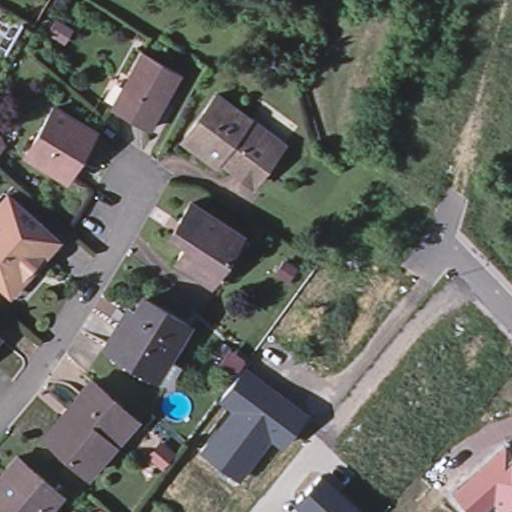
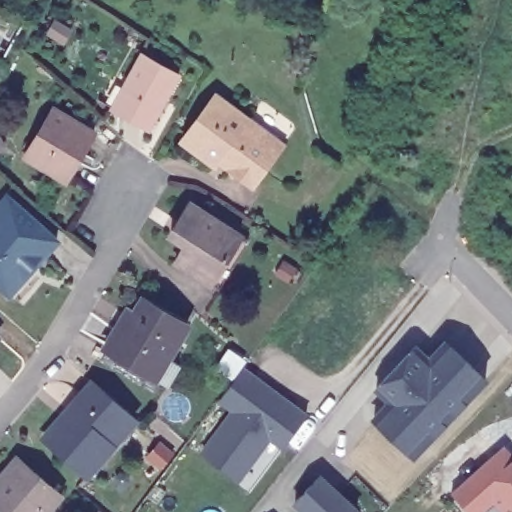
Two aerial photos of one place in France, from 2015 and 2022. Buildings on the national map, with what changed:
unchanged [(177,76),(145,130),(108,109),(140,55),(177,76)]
unchanged [(262,167),(248,185),(215,160),(211,165),(179,142),(213,97),(275,141),(280,145),(262,167)]
unchanged [(90,130),(63,175),(22,152),(50,105),(90,130)]
unchanged [(5,290),(0,286),(0,197),(4,193),(53,236),(5,290)]
unchanged [(212,284),(187,268),(168,256),(180,240),(163,229),(183,199),(233,230),(242,236),(212,284)]
unchanged [(163,381),(143,369),(102,344),(115,322),(125,306),(130,309),(132,310),(142,295),(185,321),(165,353),(175,360),(163,381)]
new [(370,420),(385,401),(372,390),(414,344),(427,356),(445,337),(490,378),(413,458),(370,420)]
unchanged [(201,452),(231,410),(220,402),(247,366),(310,411),(282,449),(269,440),(240,481),(201,452)]
unchanged [(100,451),(85,470),(42,432),(90,377),(125,407),(132,415),(100,451)]
unchanged [(493,504),(483,512),(465,512),(447,490),(506,439),(512,445),(512,512),(501,512),(493,504)]
unchanged [(0,479),(5,473),(0,469),(15,453),(58,491),(45,505),(52,510),(50,512),(0,512),(0,479)]
unchanged [(293,502),(321,473),(359,510),(357,512),(305,512),(293,502)]

